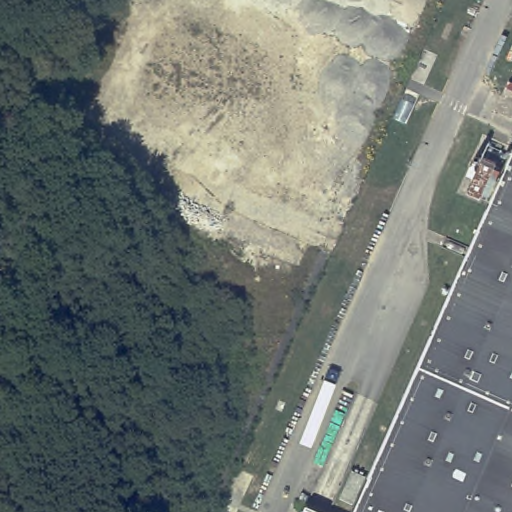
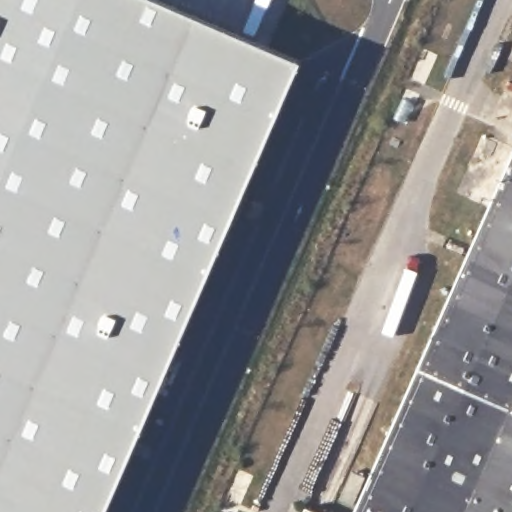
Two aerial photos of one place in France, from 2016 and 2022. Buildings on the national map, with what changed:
new [(297,63),(103,512),(0,512),(0,0),(153,0),(297,63)]
demolished [(197,0),(419,0),(416,7),(351,154),(343,172),(323,218),(138,135),(197,0)]
unchanged [(512,512),(353,512),(512,151),(512,512)]
unchanged [(316,512),(302,512),(304,507),(316,512)]

